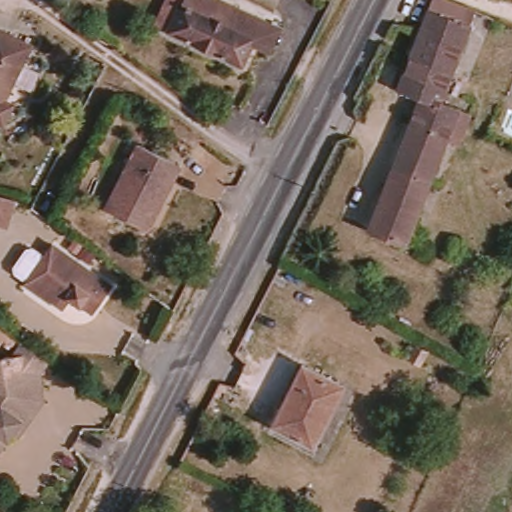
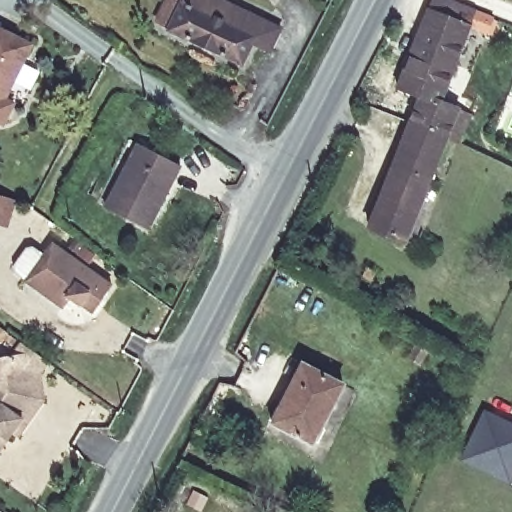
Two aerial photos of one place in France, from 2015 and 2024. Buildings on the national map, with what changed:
unchanged [(249,42),(239,63),(155,24),(167,0),(217,0),(259,20),(277,29),(266,49),(249,42)]
unchanged [(433,6),(473,23),(449,83),(410,66),(433,6)]
unchanged [(29,47),(1,101),(11,106),(1,125),(0,125),(0,33),(29,47)]
unchanged [(417,108),(396,98),(410,66),(449,83),(437,113),(452,120),(444,146),(409,132),(417,108)]
unchanged [(444,146),(403,252),(366,238),(409,132),(444,146)]
unchanged [(177,167),(145,230),(105,209),(138,147),(177,167)]
unchanged [(3,220),(0,219),(0,191),(17,195),(13,209),(9,222),(3,220)]
unchanged [(82,312),(72,305),(65,315),(26,288),(51,252),(112,291),(99,311),(93,319),(82,312)]
unchanged [(11,434),(7,441),(6,439),(0,448),(0,359),(13,357),(22,344),(47,362),(38,374),(42,401),(17,438),(11,434)]
unchanged [(343,387),(314,443),(274,424),(303,368),(343,387)]
new [(512,428),(512,464),(503,483),(455,460),(478,411),(512,428)]

